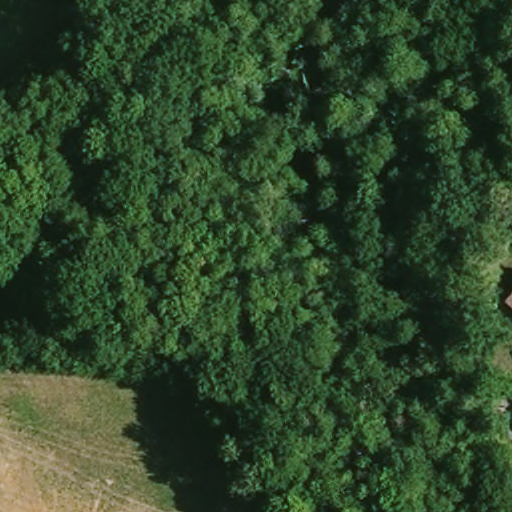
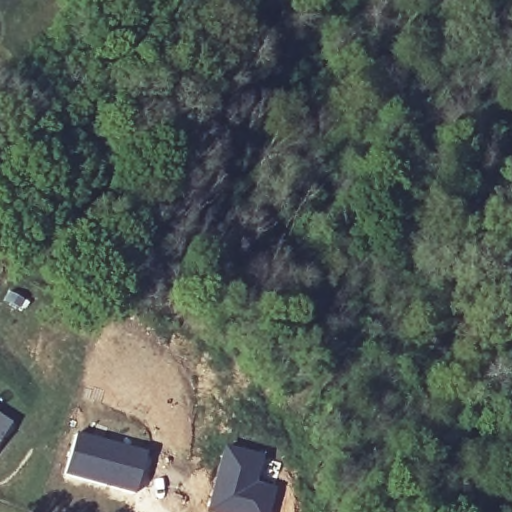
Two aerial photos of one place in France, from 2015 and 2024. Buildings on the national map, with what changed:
unchanged [(512,293),(512,307),(505,302),(512,293)]
new [(10,427),(0,441),(0,419),(10,427)]
new [(76,433),(147,452),(136,495),(64,476),(76,433)]
new [(221,445),(263,456),(257,483),(275,489),(269,512),(205,512),(221,445)]

